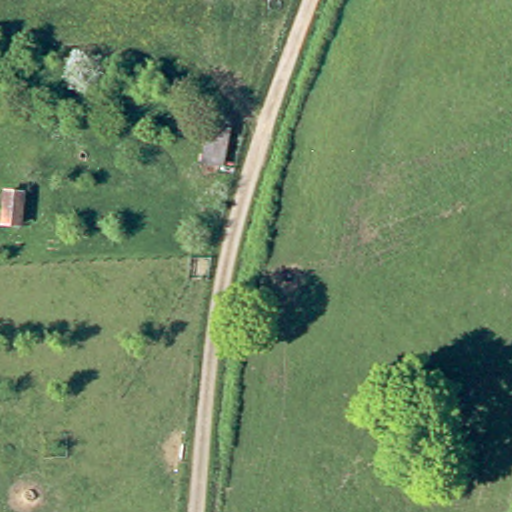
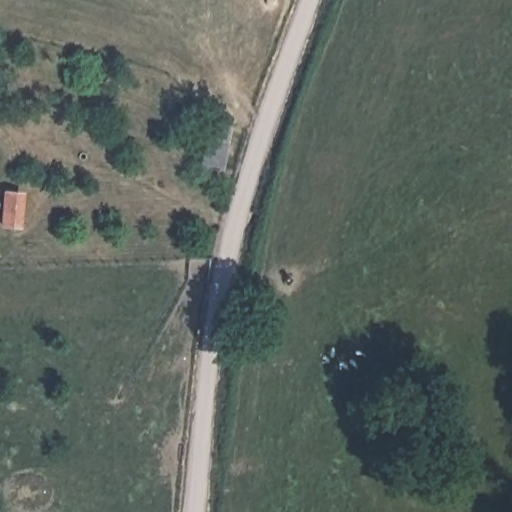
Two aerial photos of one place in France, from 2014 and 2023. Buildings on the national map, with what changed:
unchanged [(20,197),(18,229),(2,228),(5,195),(20,197)]

